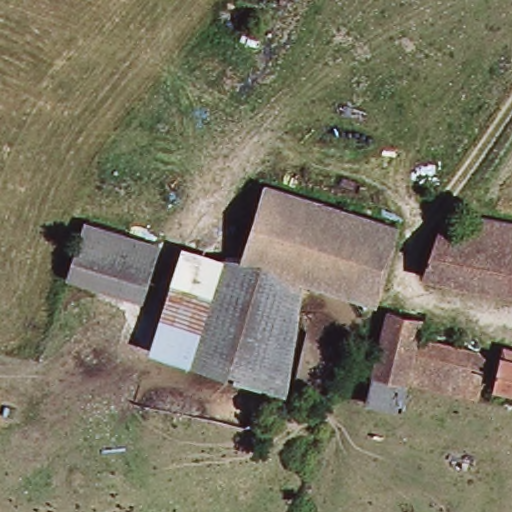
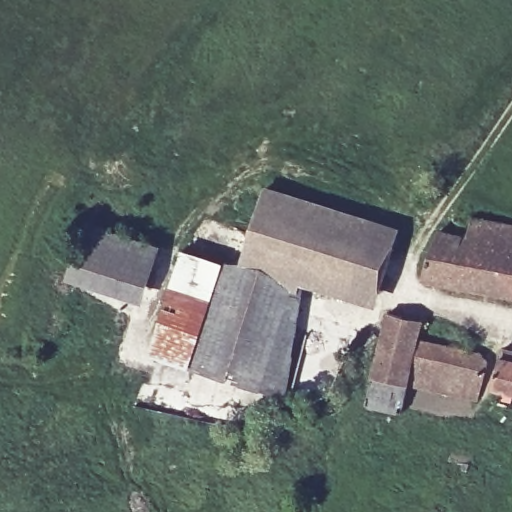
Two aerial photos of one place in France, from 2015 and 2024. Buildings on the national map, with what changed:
unchanged [(399,223),(379,302),(302,284),(299,298),(294,296),(270,391),(158,365),(184,258),(225,267),(242,261),(259,189),(399,223)]
unchanged [(430,233),(465,240),(474,218),(512,225),(512,299),(420,280),(425,239),(430,233)]
unchanged [(142,301),(71,285),(84,229),(155,245),(142,301)]
unchanged [(425,327),(419,351),(485,366),(477,400),(408,383),(411,372),(372,360),(394,317),(425,327)]
unchanged [(502,353),(512,356),(512,399),(492,394),(502,353)]
unchanged [(372,360),(411,372),(408,383),(402,408),(362,400),(372,360)]

